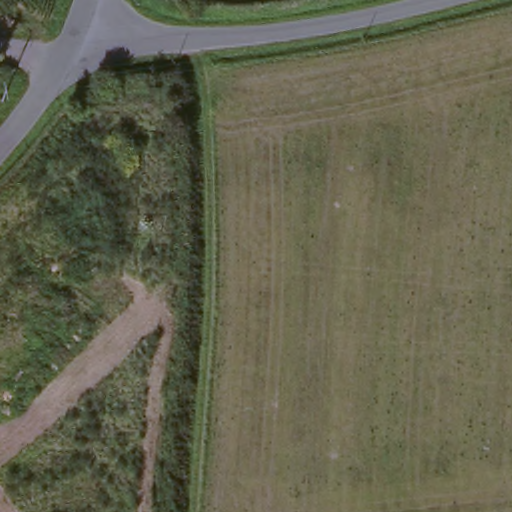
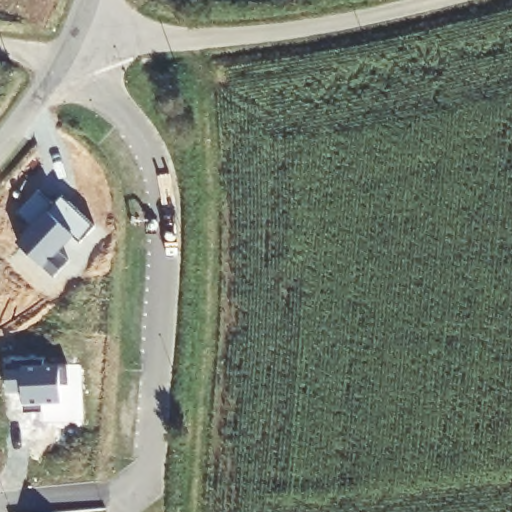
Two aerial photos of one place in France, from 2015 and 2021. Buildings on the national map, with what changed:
new [(53,205),(62,196),(68,202),(94,227),(79,244),(72,237),(57,251),(68,262),(53,277),(17,243),(31,228),(16,214),(38,190),(53,205)]
new [(45,361),(45,368),(69,367),(71,387),(62,387),(63,404),(43,405),(44,413),(25,414),(24,394),(8,395),(8,362),(45,361)]

